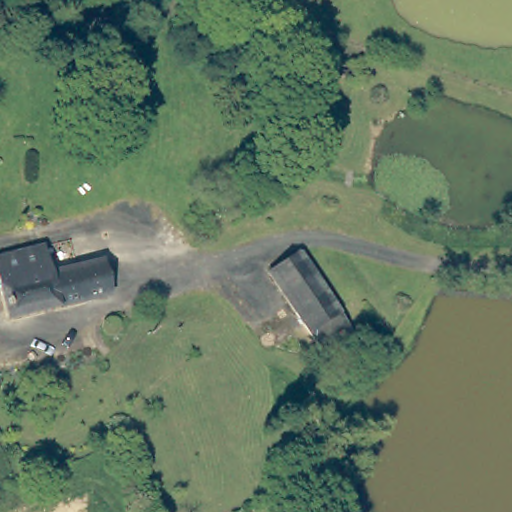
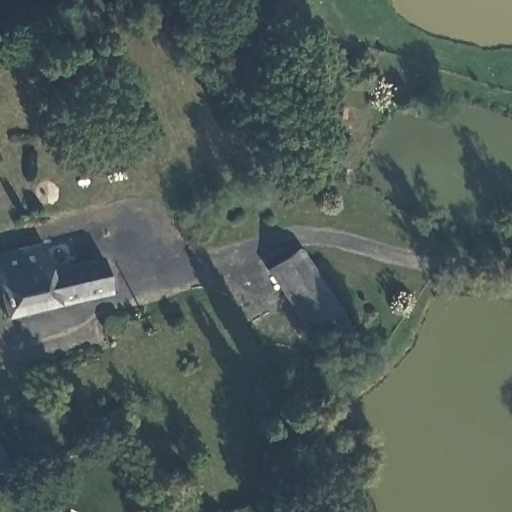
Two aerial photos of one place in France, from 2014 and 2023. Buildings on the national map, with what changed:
unchanged [(114,291),(7,317),(0,288),(0,255),(44,244),(51,272),(87,262),(96,260),(106,258),(114,291)]
unchanged [(351,322),(358,333),(347,339),(340,325),(322,338),(271,265),(299,247),(351,322)]
unchanged [(109,330),(104,322),(117,315),(122,323),(109,330)]

